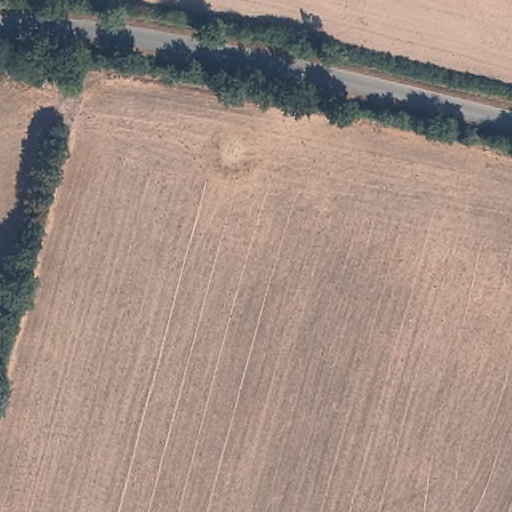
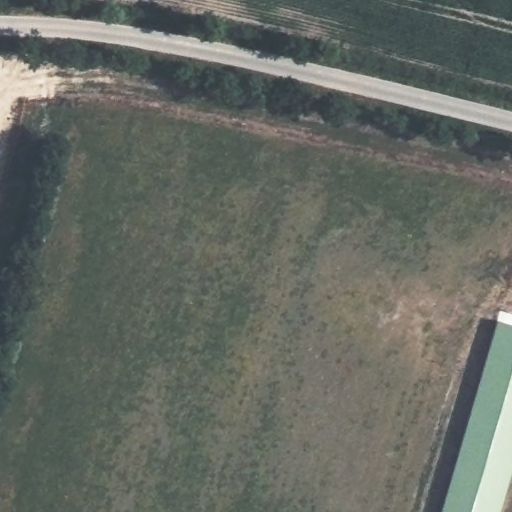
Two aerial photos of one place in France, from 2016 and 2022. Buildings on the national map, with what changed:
new [(512,325),(512,457),(496,512),(447,512),(502,321),(512,325)]

